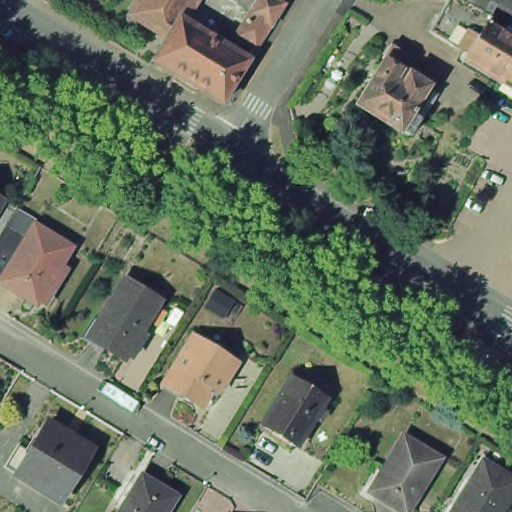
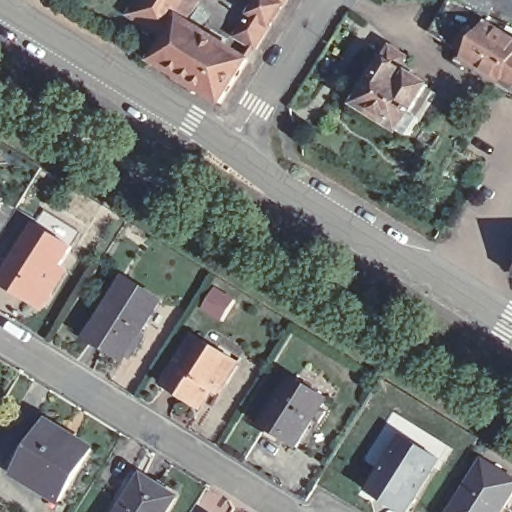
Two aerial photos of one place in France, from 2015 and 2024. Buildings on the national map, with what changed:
unchanged [(129,18),(140,0),(196,0),(182,21),(181,20),(167,42),(129,18)]
unchanged [(255,52),(235,39),(260,0),(287,0),(255,52)]
unchanged [(512,19),(490,7),(483,19),(485,20),(482,26),(462,57),(425,34),(445,0),(448,0),(460,6),(464,0),(512,0),(512,19)]
unchanged [(177,79),(153,65),(167,42),(181,20),(182,21),(248,63),(221,107),(197,92),(195,97),(173,84),(177,79)]
unchanged [(462,57),(482,26),(512,45),(512,92),(461,60),(462,57)]
unchanged [(352,108),(380,62),(378,61),(386,49),(402,59),(395,70),(422,88),(405,115),(412,119),(412,124),(405,137),(402,138),(352,108)]
unchanged [(507,101),(510,96),(512,94),(512,107),(507,104),(507,101)]
unchanged [(60,277),(53,292),(47,287),(35,305),(0,284),(0,201),(2,201),(15,209),(16,207),(37,221),(34,227),(70,248),(55,273),(60,277)]
unchanged [(512,270),(512,280),(507,277),(512,270)]
unchanged [(83,344),(95,323),(102,327),(127,286),(163,308),(127,364),(107,353),(105,357),(83,344)]
unchanged [(233,365),(213,397),(207,393),(197,411),(158,387),(189,338),(233,365)]
unchanged [(315,421),(308,417),(289,448),(254,425),(286,376),(320,398),(315,407),(321,411),(315,421)]
unchanged [(89,456),(58,507),(15,482),(3,474),(18,453),(30,460),(49,431),(89,456)]
unchanged [(386,512),(362,497),(397,441),(431,464),(401,512),(386,512)]
unchanged [(512,483),(512,493),(500,512),(450,512),(480,463),(512,483)]
unchanged [(133,496),(140,485),(155,494),(159,488),(177,500),(173,505),(170,512),(115,512),(127,492),(133,496)]

